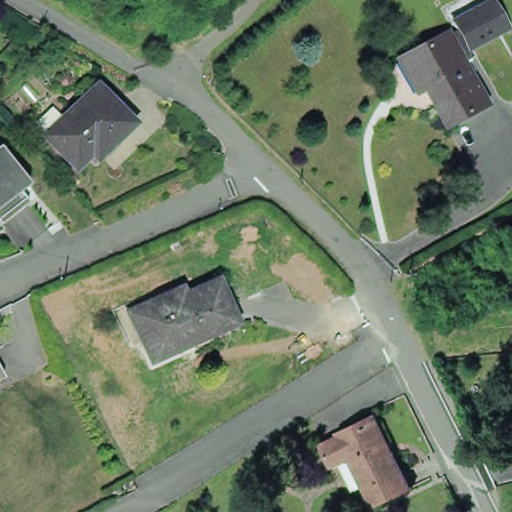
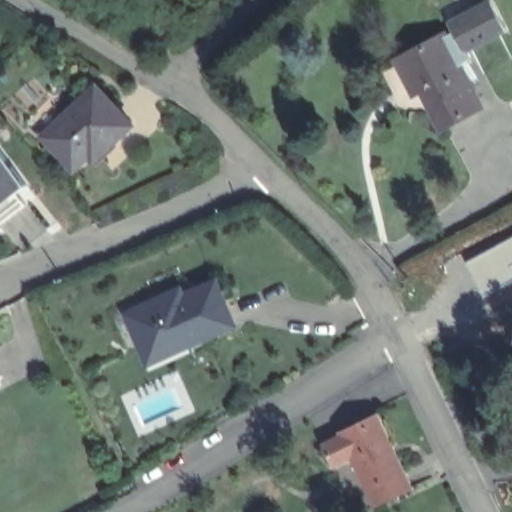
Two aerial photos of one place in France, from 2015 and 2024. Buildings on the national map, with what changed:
unchanged [(457,34),(453,25),(446,11),(467,0),(489,0),(492,5),(493,4),(507,32),(469,52),(473,60),(463,66),(448,37),(457,34)]
unchanged [(412,85),(399,61),(447,36),(448,37),(463,66),(484,107),(447,128),(426,90),(417,95),(412,85)]
unchanged [(41,136),(94,87),(130,125),(111,143),(106,137),(73,169),(41,136)]
unchanged [(26,183),(16,192),(26,204),(0,224),(0,147),(26,183)]
new [(512,279),(483,295),(464,260),(512,235),(512,279)]
unchanged [(184,292),(188,299),(221,285),(239,326),(193,346),(190,340),(149,357),(131,315),(184,292)]
unchanged [(1,386),(0,386),(0,384),(1,386)]
unchanged [(381,411),(381,414),(379,415),(396,451),(398,450),(399,452),(398,452),(413,486),(414,485),(416,488),(375,506),(374,505),(376,503),(353,455),(336,463),(337,465),(335,465),(324,440),(326,439),(328,441),(344,433),(343,431),(341,432),(341,430),(381,411)]

